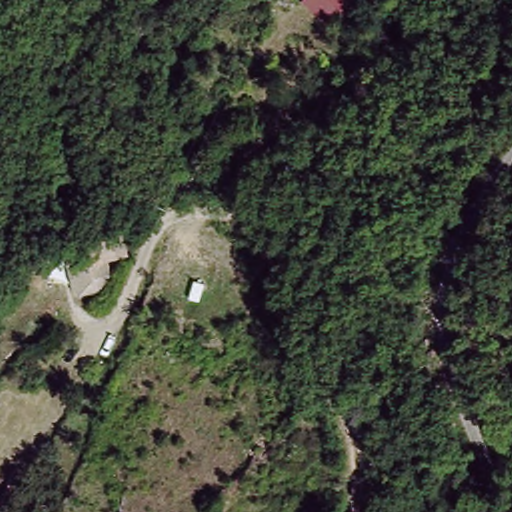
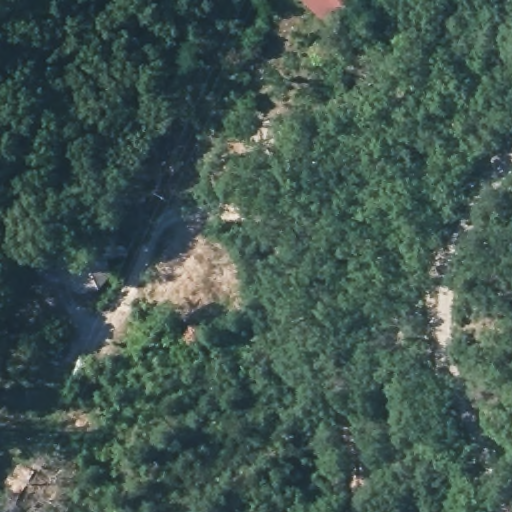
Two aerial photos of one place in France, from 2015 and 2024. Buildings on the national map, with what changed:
unchanged [(357,1),(337,24),(312,0),(356,0),(357,1)]
unchanged [(80,243),(117,242),(119,263),(72,268),(70,246),(80,243)]

